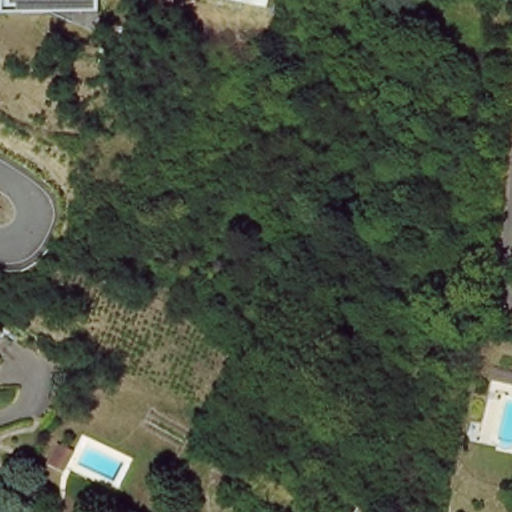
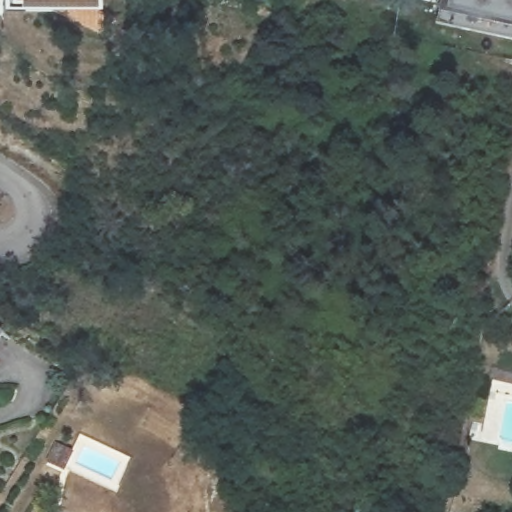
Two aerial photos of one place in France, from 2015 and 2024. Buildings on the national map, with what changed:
unchanged [(9,0),(103,0),(103,11),(9,13),(9,0)]
new [(512,26),(439,12),(442,0),(512,0),(512,26)]
unchanged [(2,341),(0,344),(0,340),(2,341)]
unchanged [(382,512),(341,512),(354,495),(382,512)]
unchanged [(406,500),(425,512),(398,512),(403,505),(406,500)]

